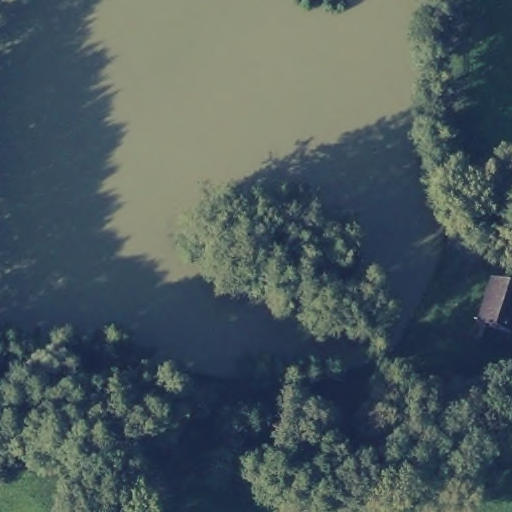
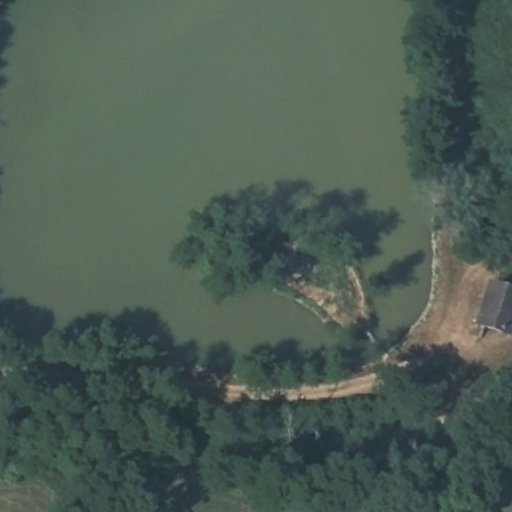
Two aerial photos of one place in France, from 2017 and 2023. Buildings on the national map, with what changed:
unchanged [(476,320),(490,278),(512,287),(512,312),(507,329),(476,320)]

